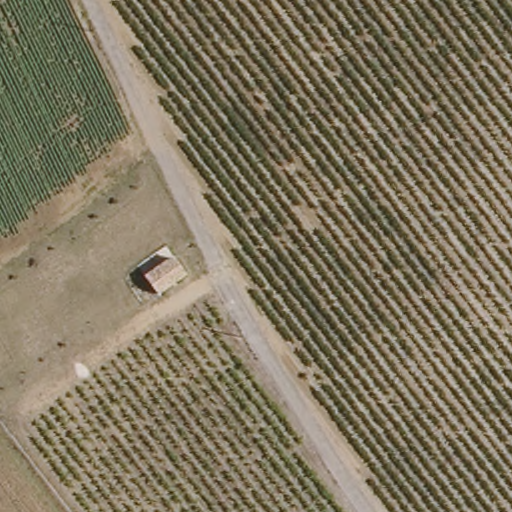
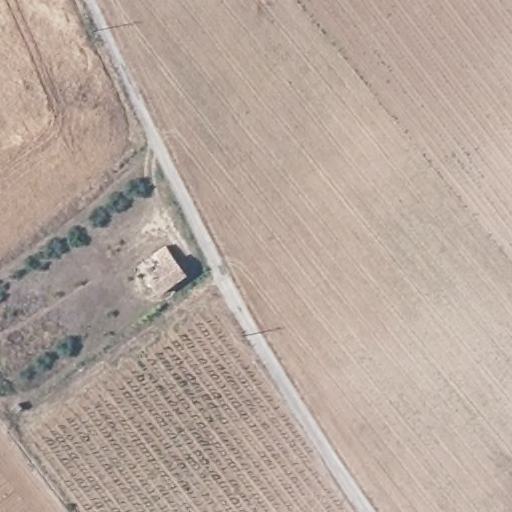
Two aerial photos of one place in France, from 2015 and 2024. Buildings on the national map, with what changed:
unchanged [(176,276),(151,295),(141,283),(166,264),(176,276)]

